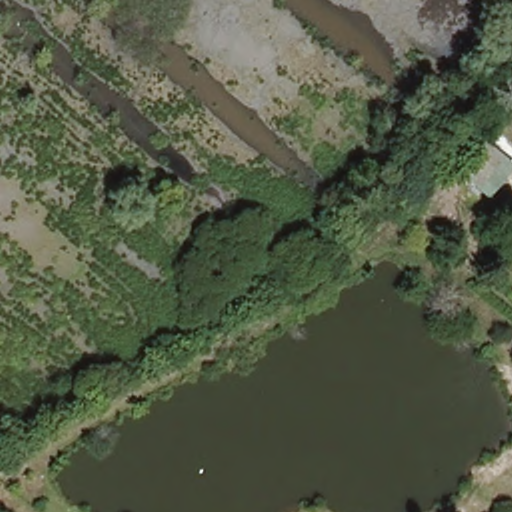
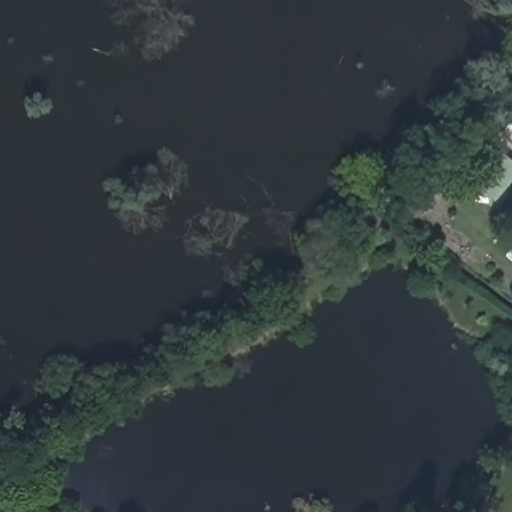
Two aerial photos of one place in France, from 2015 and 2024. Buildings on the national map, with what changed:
unchanged [(512,161),(512,176),(492,200),(462,170),(488,144),(512,161)]

